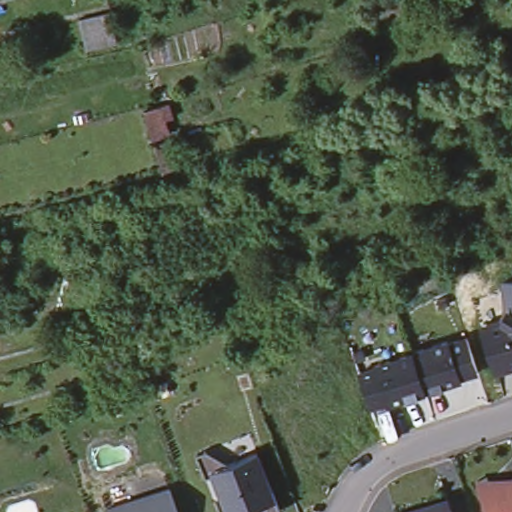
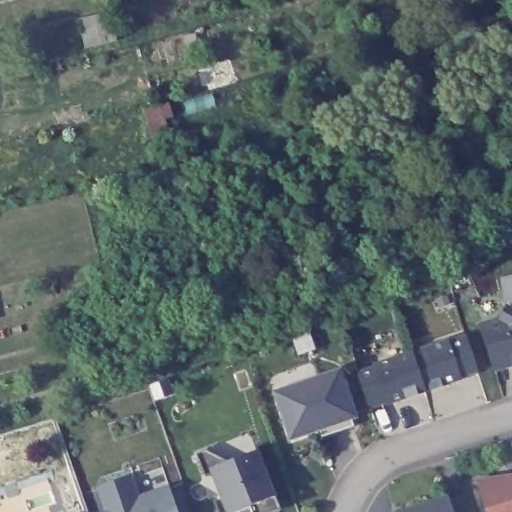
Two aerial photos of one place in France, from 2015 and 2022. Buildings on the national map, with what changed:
unchanged [(222,5),(189,15),(185,0),(220,0),(222,5)]
unchanged [(85,45),(80,25),(78,15),(110,7),(112,17),(117,39),(85,45)]
unchanged [(159,104),(168,100),(171,112),(162,115),(168,132),(150,136),(141,109),(155,105),(159,104)]
demolished [(25,110),(42,106),(43,110),(46,124),(29,128),(0,135),(0,116),(25,110)]
unchanged [(169,136),(178,165),(161,170),(152,143),(169,136)]
unchanged [(495,369),(482,326),(501,320),(507,308),(503,281),(512,280),(512,363),(495,369)]
unchanged [(410,352),(446,340),(447,342),(466,336),(477,370),(458,376),(459,378),(423,390),(410,352)]
unchanged [(359,379),(357,373),(375,367),(375,365),(410,352),(423,390),(388,402),(387,400),(368,406),(359,379)]
new [(305,381),(307,387),(343,375),(356,417),(351,419),(353,425),(322,435),(320,430),(289,440),(274,391),(305,381)]
unchanged [(195,447),(249,426),(257,445),(274,490),(279,503),(255,512),(221,512),(214,494),(202,466),(195,447)]
unchanged [(512,476),(512,512),(486,512),(478,486),(495,481),(511,476),(512,476)]
unchanged [(171,485),(180,512),(107,512),(106,507),(171,485)]
unchanged [(394,512),(393,509),(446,492),(452,512),(394,512)]

